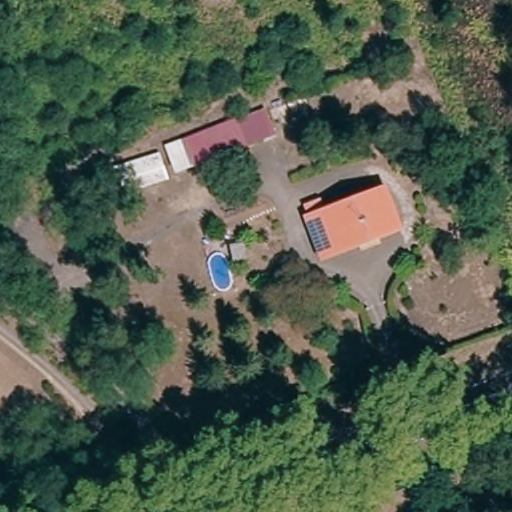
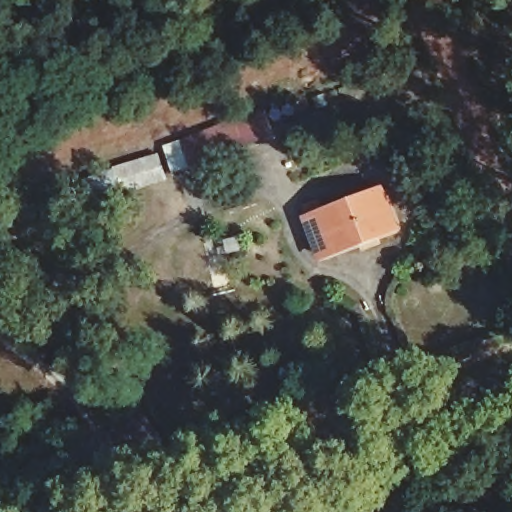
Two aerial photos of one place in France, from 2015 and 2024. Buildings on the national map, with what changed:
unchanged [(235,122),(244,146),(196,165),(187,142),(235,122)]
unchanged [(159,157),(166,176),(145,183),(146,188),(128,195),(124,184),(97,193),(93,180),(159,157)]
unchanged [(380,196),(394,234),(318,262),(304,225),(380,196)]

